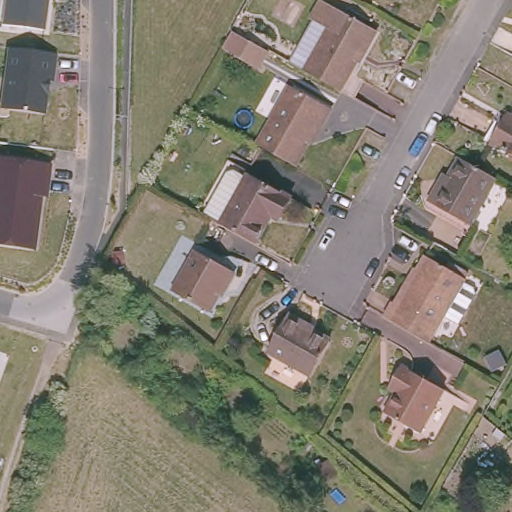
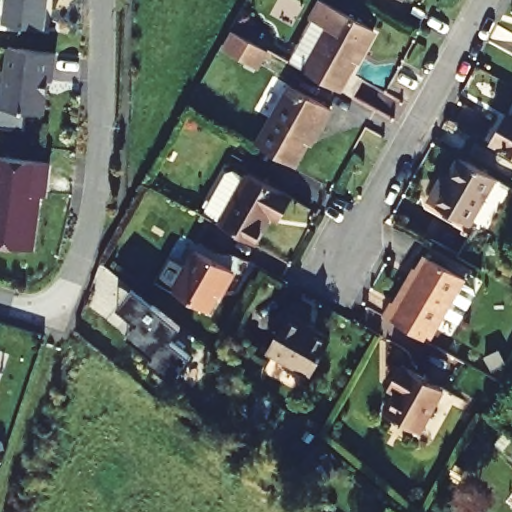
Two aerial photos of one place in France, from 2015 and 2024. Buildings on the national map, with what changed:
unchanged [(0,0),(46,0),(42,27),(0,20),(0,0)]
unchanged [(334,26),(317,17),(325,0),(330,0),(344,7),(380,29),(346,89),(310,69),(334,26)]
unchanged [(268,49),(258,67),(223,47),(232,29),(268,49)]
unchanged [(0,65),(4,42),(55,51),(44,113),(0,104),(0,65)]
unchanged [(257,142),(291,84),(332,108),(324,122),(320,121),(295,164),(257,142)]
unchanged [(489,141),(499,122),(505,126),(512,114),(512,154),(489,141)]
unchanged [(0,154),(45,161),(34,249),(0,243),(0,154)]
unchanged [(419,206),(428,189),(432,191),(449,160),(486,181),(459,228),(419,206)]
unchanged [(245,175),(256,182),(258,177),(297,199),(285,221),(280,218),(263,247),(212,217),(236,177),(245,175)]
unchanged [(209,312),(172,291),(184,271),(195,251),(232,270),(209,312)]
unchanged [(380,311),(387,297),(392,300),(420,251),(459,273),(469,280),(471,287),(454,317),(439,307),(422,335),(380,311)]
new [(171,341),(190,357),(171,378),(151,362),(154,357),(129,336),(139,323),(119,309),(132,291),(180,327),(171,341)]
unchanged [(300,325),(325,342),(306,377),(262,352),(284,312),(301,322),(300,325)]
unchanged [(441,390),(412,440),(377,419),(392,393),(386,389),(390,382),(399,366),(441,390)]

